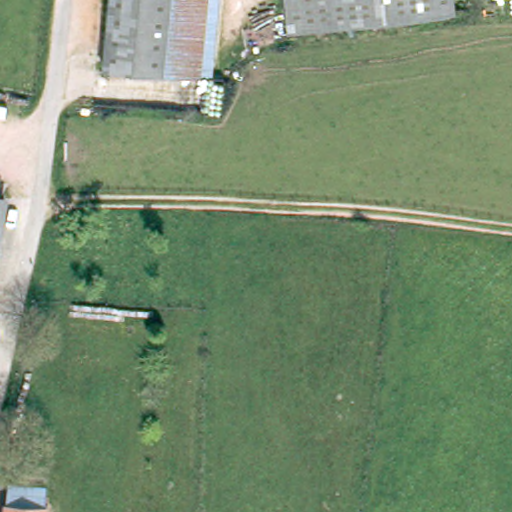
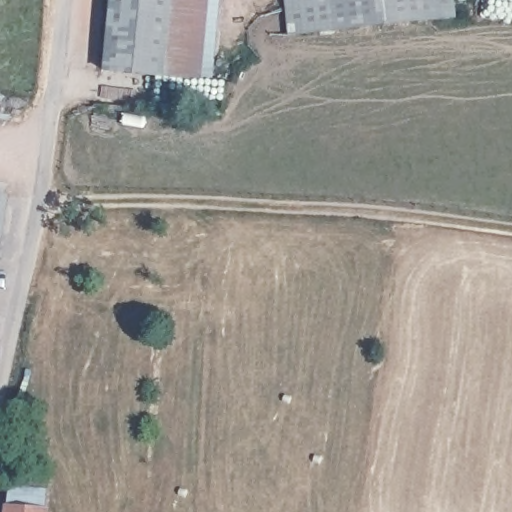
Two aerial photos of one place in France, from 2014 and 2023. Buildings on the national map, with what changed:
unchanged [(207,82),(99,71),(105,0),(215,0),(207,82)]
unchanged [(285,35),(281,0),(412,0),(415,20),(285,35)]
unchanged [(458,17),(415,20),(412,0),(456,0),(458,17)]
unchanged [(44,495),(43,512),(2,512),(3,495),(44,495)]

